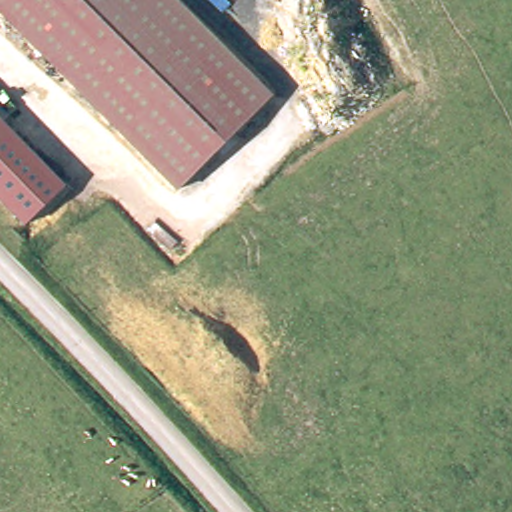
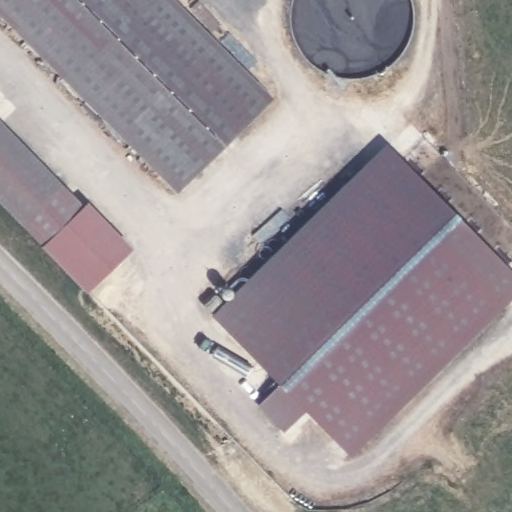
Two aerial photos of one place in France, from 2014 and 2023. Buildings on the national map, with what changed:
unchanged [(187,194),(0,10),(0,0),(180,0),(280,99),(187,194)]
unchanged [(65,184),(25,224),(0,199),(0,116),(65,184)]
new [(512,296),(350,454),(305,409),(283,430),(257,404),(279,382),(210,313),(385,139),(512,269),(512,296)]
new [(132,247),(89,290),(25,224),(65,184),(132,247)]

